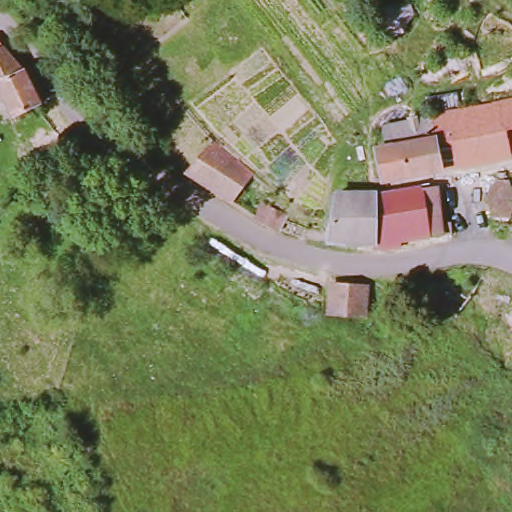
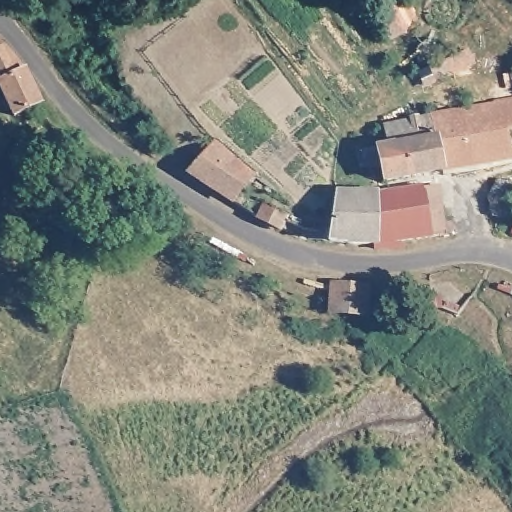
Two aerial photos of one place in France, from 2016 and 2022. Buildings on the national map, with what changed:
unchanged [(2,46),(31,90),(35,104),(9,120),(0,102),(0,45),(2,46)]
unchanged [(512,99),(512,131),(507,132),(512,159),(474,165),(460,110),(512,99)]
unchanged [(474,165),(443,171),(378,181),(372,144),(384,141),(380,122),(427,112),(460,110),(474,165)]
unchanged [(210,140),(250,171),(228,199),(184,174),(210,140)]
unchanged [(487,216),(483,192),(489,175),(505,177),(503,196),(512,198),(512,212),(510,220),(487,216)]
unchanged [(375,191),(379,191),(419,187),(437,185),(442,232),(424,235),(373,240),(367,191),(375,191)]
unchanged [(362,191),(367,191),(373,240),(372,241),(327,243),(335,191),(342,191),(362,191)]
unchanged [(259,202),(285,212),(280,227),(250,215),(259,202)]
unchanged [(364,312),(327,311),(328,283),(337,282),(337,278),(365,280),(364,312)]

